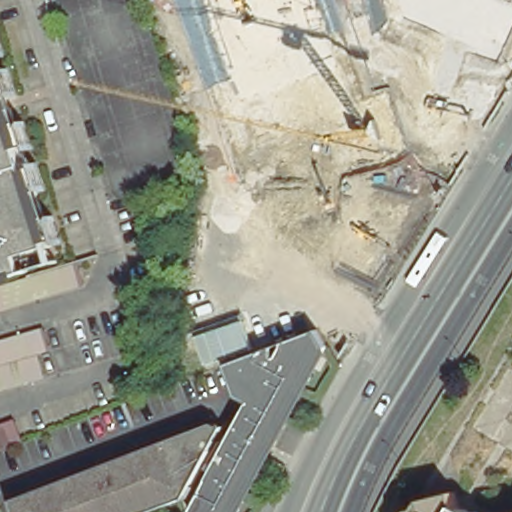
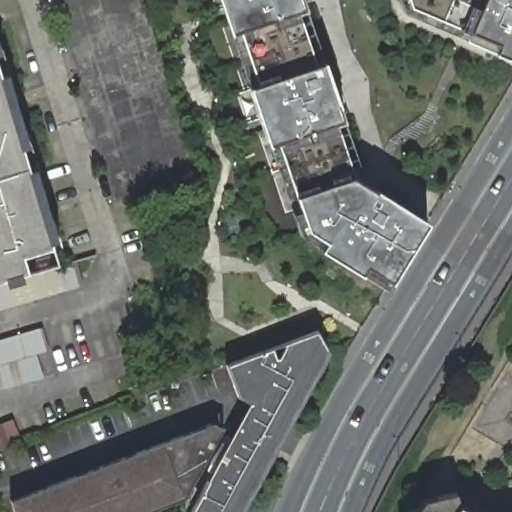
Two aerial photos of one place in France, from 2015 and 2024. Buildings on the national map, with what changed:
new [(305,8),(299,9),(315,63),(324,61),(343,117),(335,120),(352,174),(427,222),(392,278),(387,287),(361,272),(323,248),(326,240),(309,227),(297,196),(278,141),(270,143),(251,85),(258,83),(240,29),(231,32),(220,0),(302,0),(305,8)]
demolished [(358,10),(401,2),(415,0),(491,0),(505,78),(465,85),(417,93),(373,101),(358,10)]
new [(409,0),(512,0),(512,57),(496,49),(457,32),(460,24),(411,6),(409,0)]
unchanged [(63,242),(54,245),(59,261),(30,270),(0,280),(0,38),(63,242)]
unchanged [(77,263),(84,285),(0,310),(0,285),(77,263)]
unchanged [(43,328),(50,351),(37,354),(0,365),(0,340),(43,328)]
unchanged [(249,402),(237,396),(226,363),(317,330),(328,347),(238,512),(191,512),(191,511),(249,402)]
new [(219,330),(230,356),(209,364),(199,338),(219,330)]
unchanged [(44,378),(0,390),(0,365),(37,354),(44,378)]
unchanged [(13,419),(22,441),(0,449),(0,424),(13,419)]
unchanged [(223,427),(185,498),(147,512),(14,512),(11,500),(214,422),(223,427)]
unchanged [(458,490),(461,504),(474,512),(418,512),(426,498),(458,490)]

